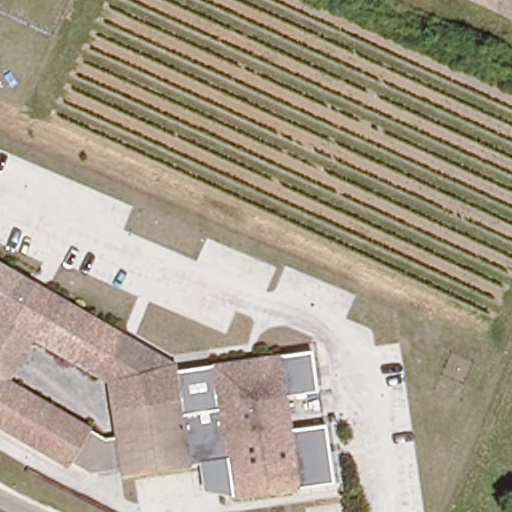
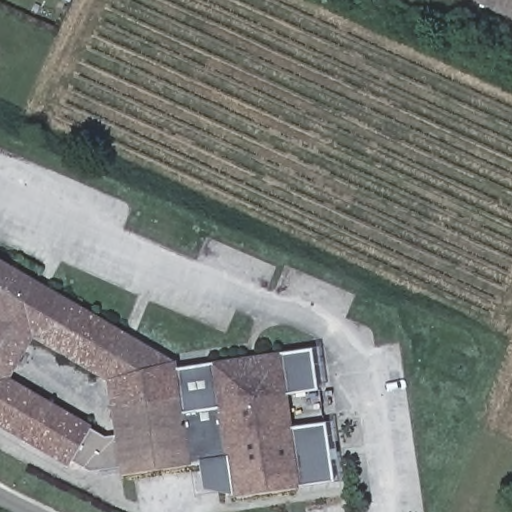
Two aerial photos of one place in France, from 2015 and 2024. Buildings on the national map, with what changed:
unchanged [(477,0),(512,0),(512,19),(477,0)]
unchanged [(125,478),(124,471),(92,476),(75,466),(71,469),(0,426),(0,258),(37,281),(47,287),(175,365),(176,371),(214,366),(281,358),(300,488),(232,499),(230,485),(210,487),(208,465),(125,478)]
unchanged [(312,353),(317,391),(286,395),(281,358),(312,353)]
unchanged [(324,425),(333,483),(300,488),(291,429),(324,425)]

